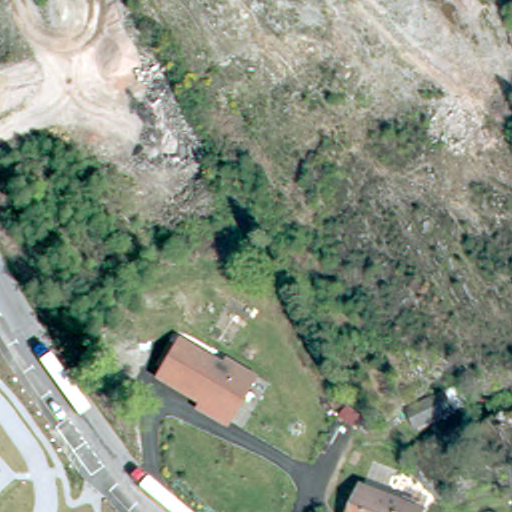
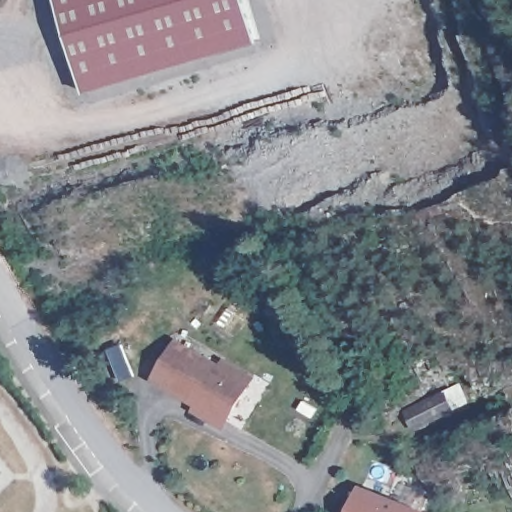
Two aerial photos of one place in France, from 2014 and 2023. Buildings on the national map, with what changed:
new [(63,0),(248,0),(260,45),(89,92),(63,0)]
unchanged [(222,362),(226,357),(258,375),(228,429),(194,412),(196,405),(155,381),(179,337),(222,362)]
unchanged [(412,429),(401,412),(448,384),(459,402),(412,429)]
unchanged [(414,512),(351,512),(360,490),(414,512)]

